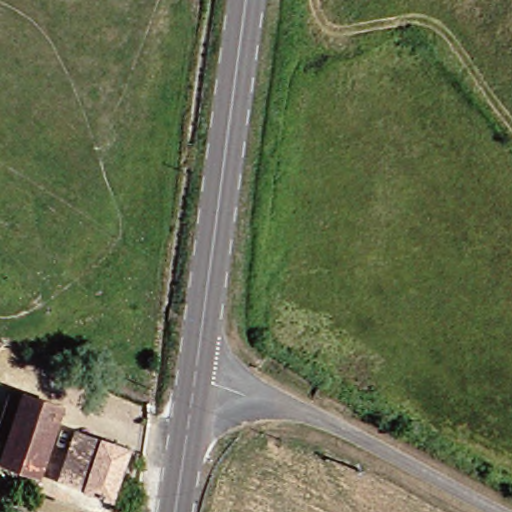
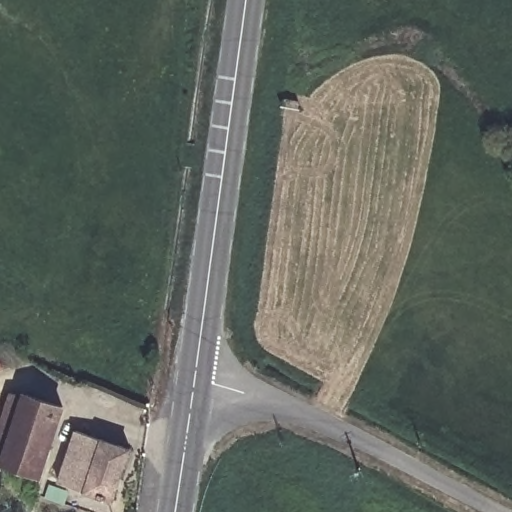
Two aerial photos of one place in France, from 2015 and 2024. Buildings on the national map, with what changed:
unchanged [(0,420),(8,391),(54,407),(30,476),(0,467),(0,420)]
unchanged [(48,481),(65,426),(119,446),(101,499),(48,481)]

